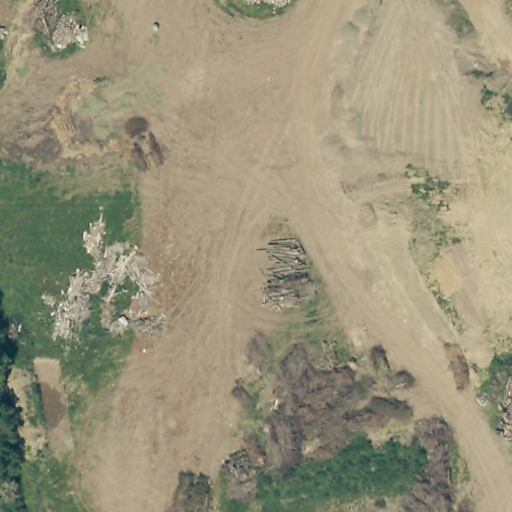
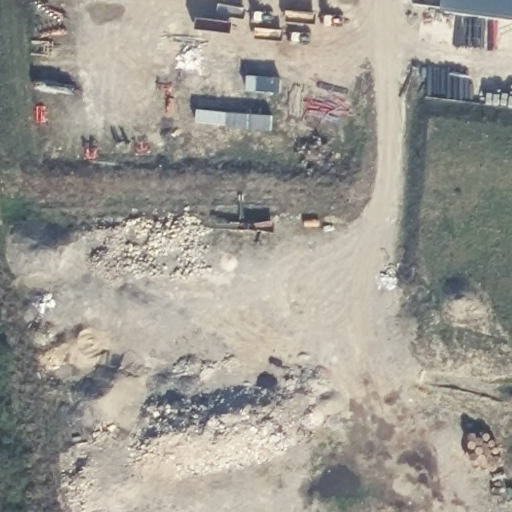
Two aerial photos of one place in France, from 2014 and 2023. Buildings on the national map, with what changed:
new [(448,0),(512,0),(512,22),(446,14),(448,0)]

